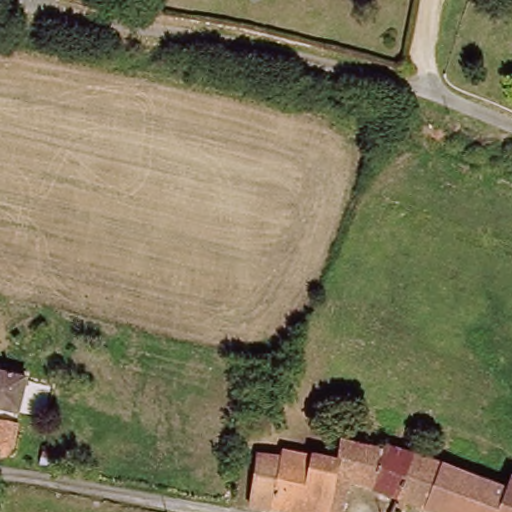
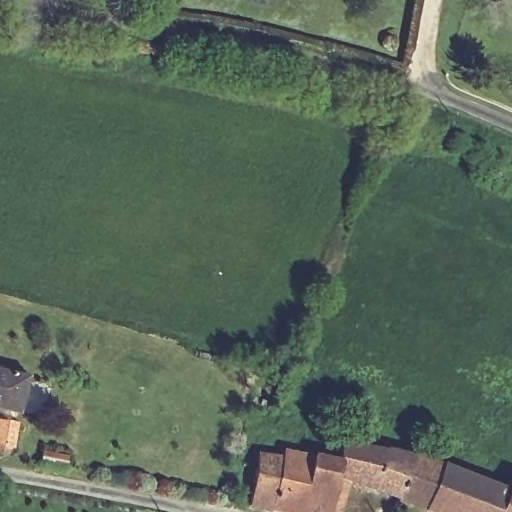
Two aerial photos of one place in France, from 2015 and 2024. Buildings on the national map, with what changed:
unchanged [(20,406),(19,414),(14,445),(10,449),(9,454),(1,452),(2,444),(0,443),(0,429),(2,416),(7,416),(8,410),(0,408),(0,372),(29,378),(20,406)]
unchanged [(282,457),(339,470),(344,451),(388,462),(390,457),(411,464),(399,503),(377,496),(344,487),(338,512),(268,512),(279,466),(282,457)]
unchanged [(255,512),(247,510),(258,463),(279,466),(268,512),(255,512)]
unchanged [(512,491),(512,512),(423,512),(399,503),(411,464),(509,499),(512,491)]

